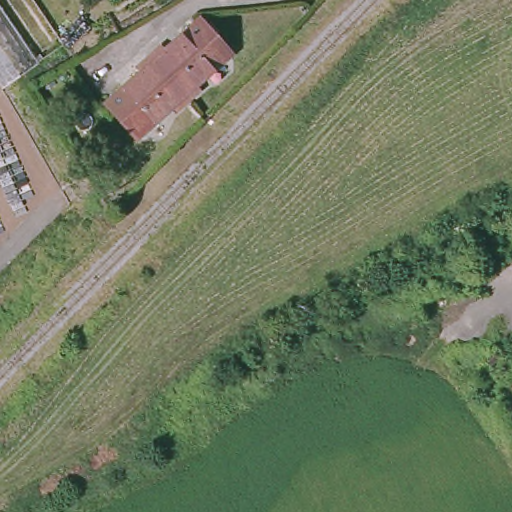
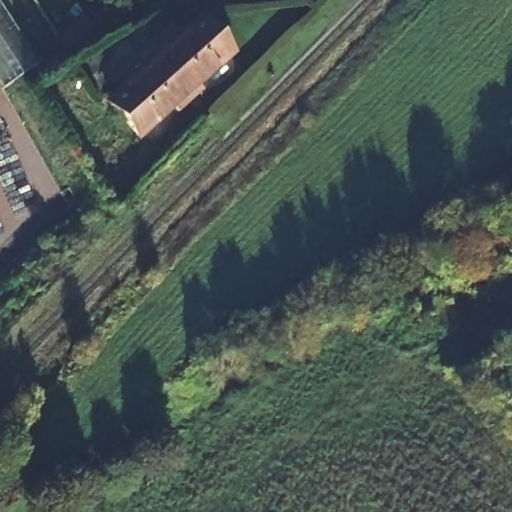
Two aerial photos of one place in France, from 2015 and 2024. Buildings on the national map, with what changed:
unchanged [(5,85),(0,88),(0,0),(31,0),(57,37),(62,45),(63,46),(5,85)]
unchanged [(228,53),(183,94),(151,60),(196,19),(228,53)]
unchanged [(183,94),(137,136),(105,102),(151,60),(183,94)]

